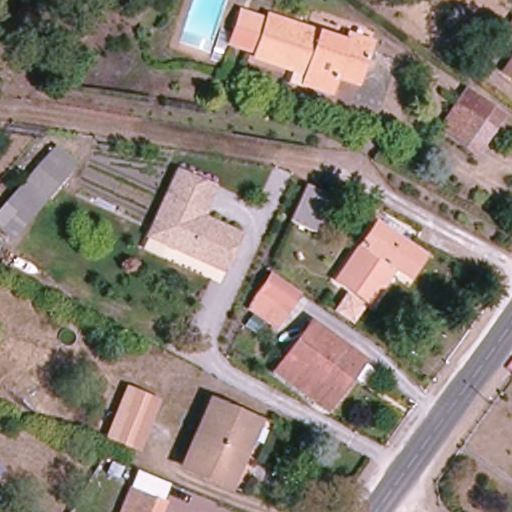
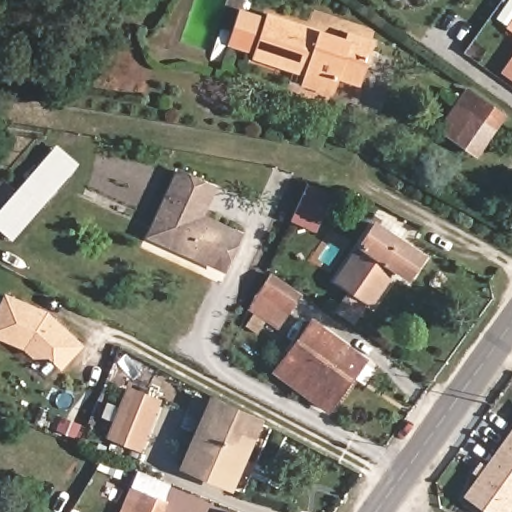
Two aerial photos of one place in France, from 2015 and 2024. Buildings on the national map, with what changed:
unchanged [(440,26),(455,7),(474,20),(459,39),(440,26)]
unchanged [(301,28),(317,33),(346,43),(350,36),(370,43),(357,84),(335,78),(330,93),(300,84),(308,59),(293,54),(288,68),(252,57),(254,53),(229,46),(235,29),(240,13),(265,21),(266,17),(301,28)]
unchanged [(512,23),(512,29),(509,27),(512,23)]
unchanged [(512,59),(512,78),(503,72),(512,59)]
unchanged [(440,129),(465,92),(501,117),(475,154),(440,129)]
unchanged [(50,153),(69,170),(42,201),(23,184),(50,153)]
unchanged [(154,215),(175,169),(209,186),(195,215),(205,219),(235,233),(219,268),(159,239),(145,233),(154,215)]
unchanged [(42,201),(10,239),(0,230),(0,211),(23,184),(42,201)]
unchanged [(328,196),(312,231),(290,222),(306,185),(328,196)]
unchanged [(375,225),(418,257),(405,277),(394,269),(369,304),(335,280),(375,225)]
unchanged [(288,310),(260,290),(272,274),(300,294),(288,310)]
new [(60,369),(46,356),(31,358),(24,350),(0,340),(0,302),(4,292),(45,310),(82,345),(60,369)]
unchanged [(310,323),(362,361),(325,411),(273,373),(310,323)]
unchanged [(107,437),(126,390),(155,402),(136,449),(107,437)]
unchanged [(181,468),(210,402),(257,422),(230,488),(181,468)]
new [(512,461),(502,453),(512,440),(512,461)]
new [(512,461),(512,511),(511,512),(490,512),(470,498),(502,453),(512,461)]
unchanged [(133,512),(136,504),(125,500),(131,487),(165,501),(160,512),(133,512)]

